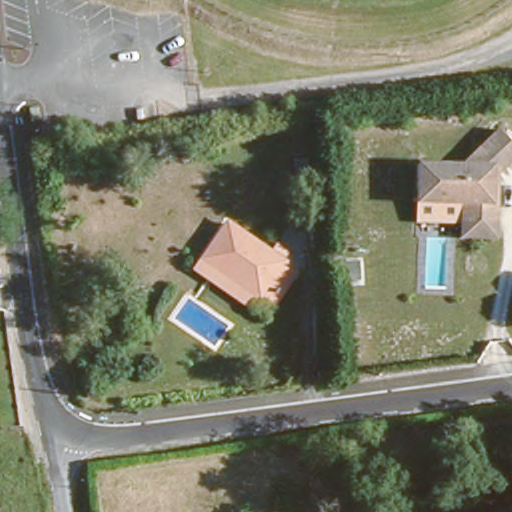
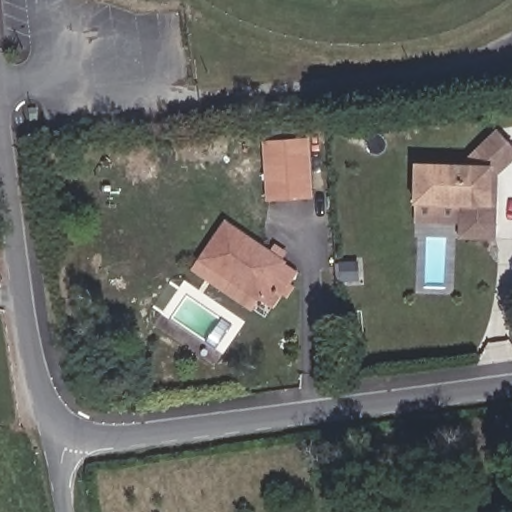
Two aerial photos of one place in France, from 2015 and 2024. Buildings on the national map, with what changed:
new [(262,140),(309,137),(314,199),(267,202),(262,140)]
unchanged [(451,231),(453,211),(422,207),(409,206),(415,166),(418,167),(451,173),(491,140),(512,167),(512,168),(492,189),(488,218),(486,236),(484,251),(450,246),(451,231)]
unchanged [(231,211),(298,270),(270,305),(260,296),(203,246),(231,211)]
unchanged [(250,308),(193,258),(203,246),(260,296),(250,308)]

